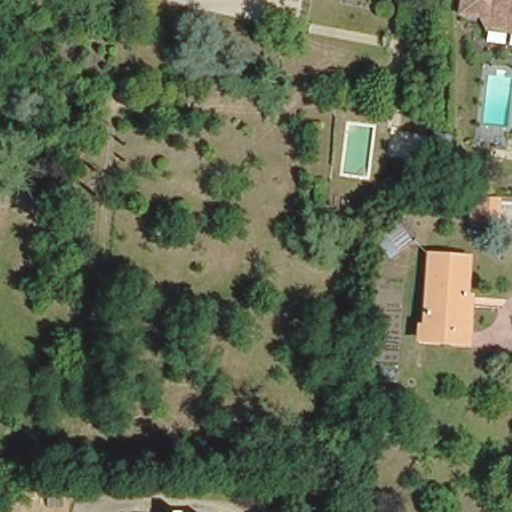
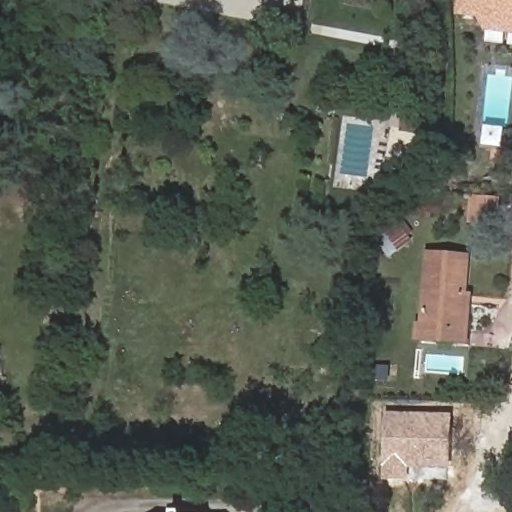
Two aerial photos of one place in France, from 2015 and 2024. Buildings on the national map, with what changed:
unchanged [(481,23),(462,22),(463,0),(512,0),(512,37),(489,36),(481,23)]
unchanged [(497,231),(463,228),(465,196),(501,197),(497,231)]
unchanged [(410,240),(387,257),(373,237),(395,220),(410,240)]
unchanged [(422,340),(423,324),(426,253),(465,255),(464,292),(469,293),(468,326),(467,342),(422,340)]
new [(452,471),(411,470),(411,482),(384,482),(386,414),(454,415),(452,471)]

